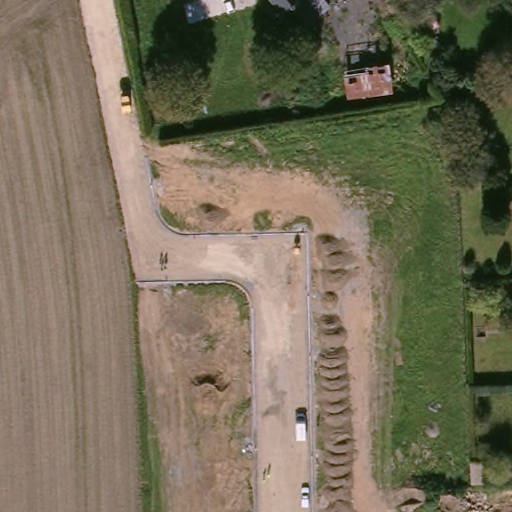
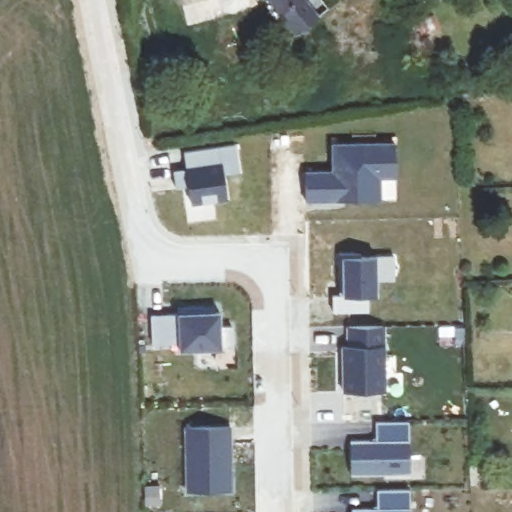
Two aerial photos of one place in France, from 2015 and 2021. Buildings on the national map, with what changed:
unchanged [(304,31),(286,11),(276,0),(311,0),(323,11),(304,31)]
new [(186,166),(184,147),(236,141),(239,170),(224,171),(227,196),(191,200),(188,182),(176,184),(174,167),(186,166)]
new [(305,203),(305,174),(333,173),(332,146),(394,145),(395,179),(380,179),(380,202),(368,202),(346,203),(334,202),(305,203)]
new [(333,298),(343,298),(343,284),(341,285),(340,256),(361,256),(361,259),(395,259),(396,282),(377,283),(377,298),(369,298),(369,313),(333,314),(333,298)]
new [(171,305),(198,304),(208,303),(208,310),(213,309),(214,324),(226,323),(227,346),(173,348),(173,341),(147,342),(145,312),(172,311),(171,305)]
new [(235,422),(236,487),(192,488),(191,423),(235,422)]
new [(371,446),(370,428),(404,427),(405,480),(346,481),(345,447),(371,446)]
new [(376,501),(375,483),(409,482),(410,512),(350,512),(350,502),(376,501)]

